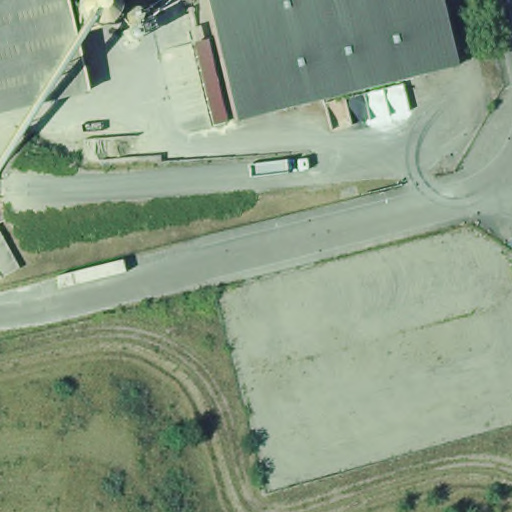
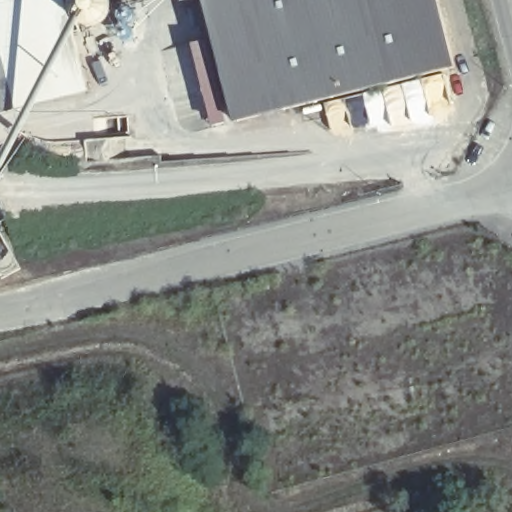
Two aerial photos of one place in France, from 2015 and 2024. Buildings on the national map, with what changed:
unchanged [(79,80),(0,99),(0,0),(61,0),(79,80)]
unchanged [(182,1),(181,0),(189,0),(182,1)]
unchanged [(450,62),(229,119),(198,0),(433,0),(450,62)]
unchanged [(225,122),(212,127),(193,44),(206,42),(225,122)]

